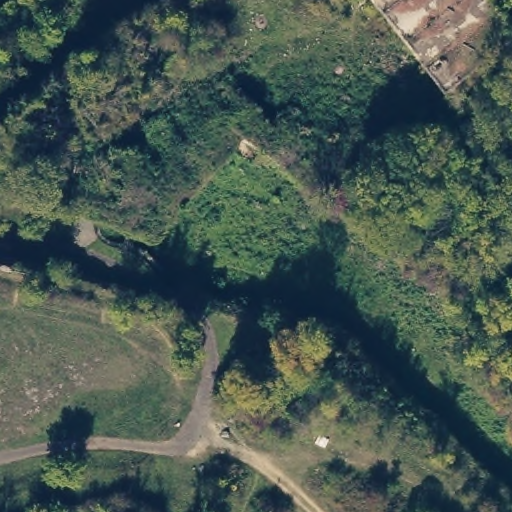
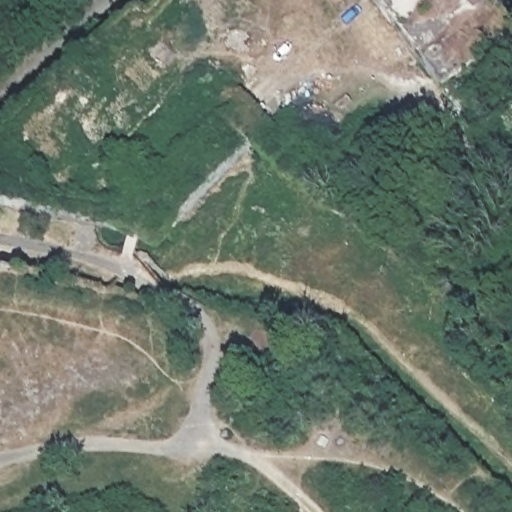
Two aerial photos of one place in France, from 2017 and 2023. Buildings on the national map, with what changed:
unchanged [(369,0),(496,0),(512,20),(512,41),(440,94),(369,0)]

